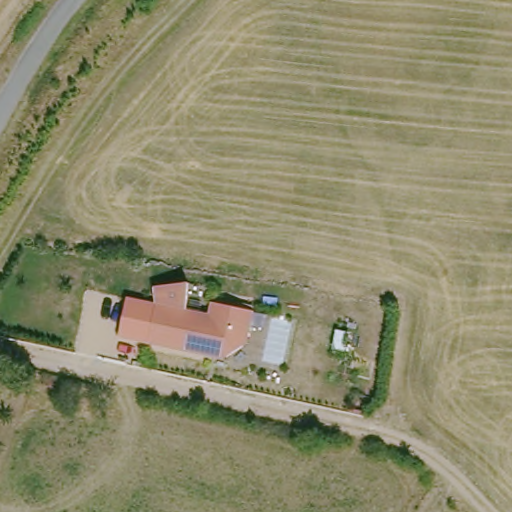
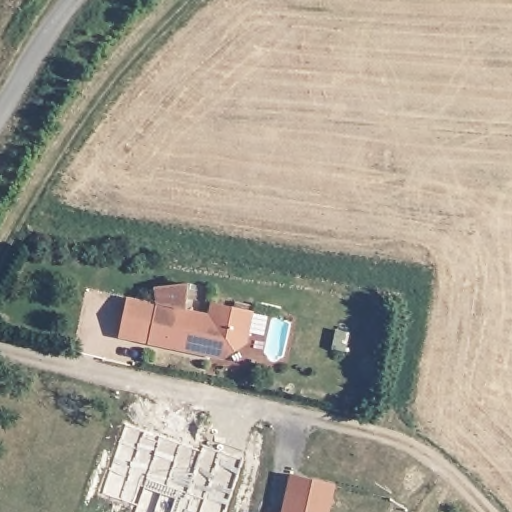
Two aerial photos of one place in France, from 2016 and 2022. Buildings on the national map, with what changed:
unchanged [(153,288),(187,283),(183,306),(159,301),(153,288)]
unchanged [(157,306),(148,343),(118,335),(128,298),(159,301),(157,306)]
unchanged [(209,312),(210,302),(255,310),(247,340),(226,359),(148,343),(159,301),(209,312)]
new [(290,475),(337,484),(330,512),(282,512),(290,475)]

